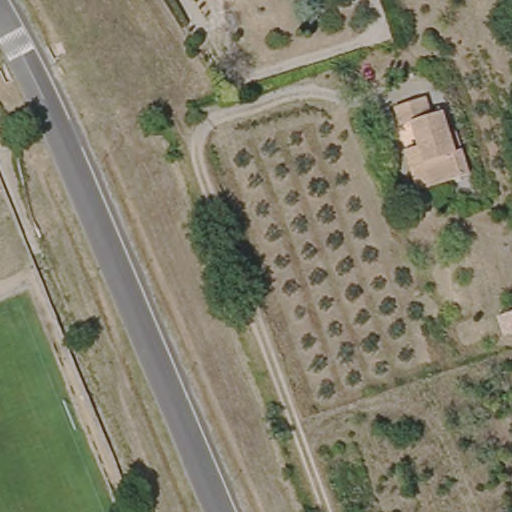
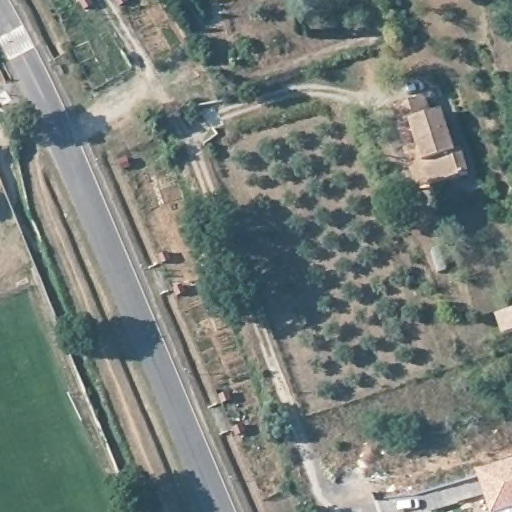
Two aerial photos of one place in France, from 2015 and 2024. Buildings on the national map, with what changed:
unchanged [(425,91),(433,111),(452,108),(467,185),(423,195),(389,102),(425,91)]
unchanged [(512,322),(498,326),(493,308),(512,303),(512,322)]
new [(512,508),(499,512),(489,512),(485,500),(475,470),(512,458),(512,508)]

